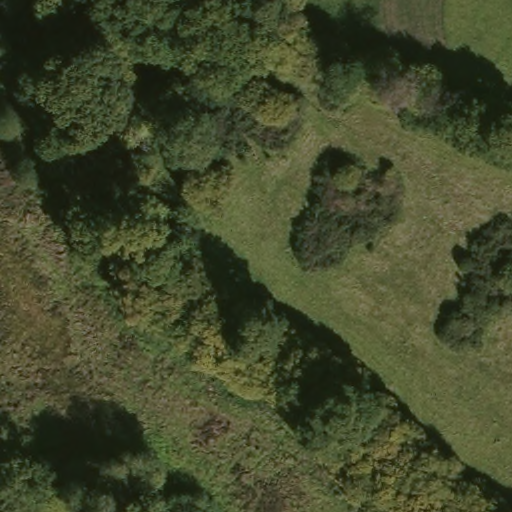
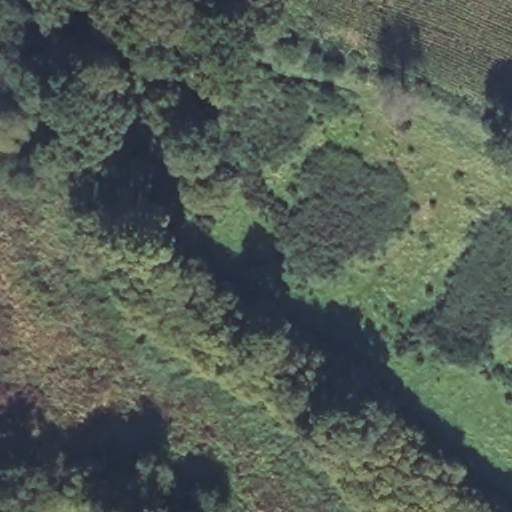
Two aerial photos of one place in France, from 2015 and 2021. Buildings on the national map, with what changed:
[]

